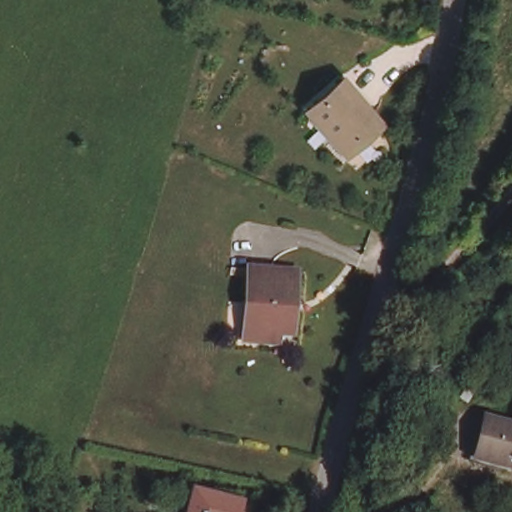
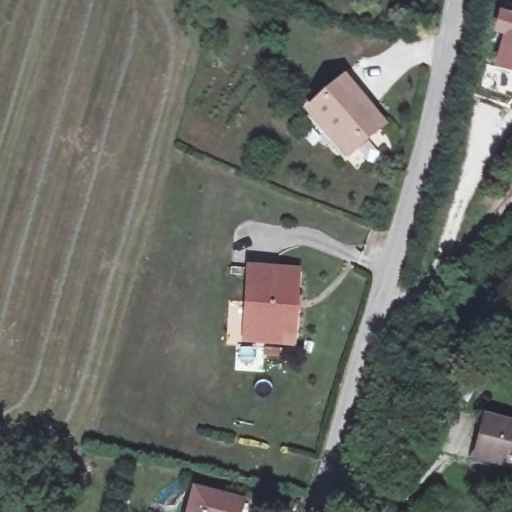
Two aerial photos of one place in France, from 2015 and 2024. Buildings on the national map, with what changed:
new [(504,37),(495,34),(500,12),(512,16),(512,74),(496,69),(504,37)]
unchanged [(385,129),(349,160),(308,115),(344,83),(385,129)]
unchanged [(248,288),(250,269),(297,272),(293,334),(280,333),(280,342),(257,340),(245,339),(248,288)]
unchanged [(512,466),(475,457),(485,417),(512,424),(512,466)]
unchanged [(247,497),(243,512),(193,512),(200,485),(247,497)]

